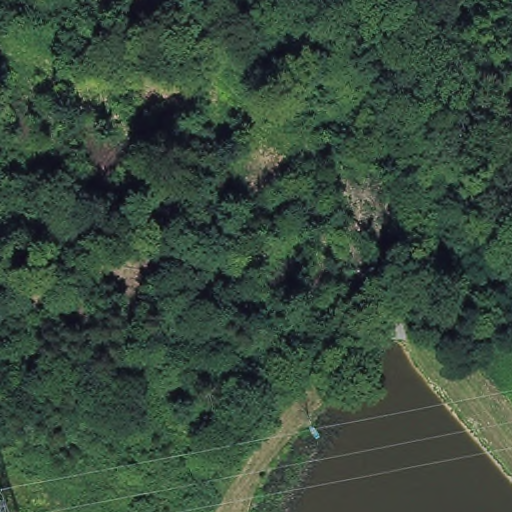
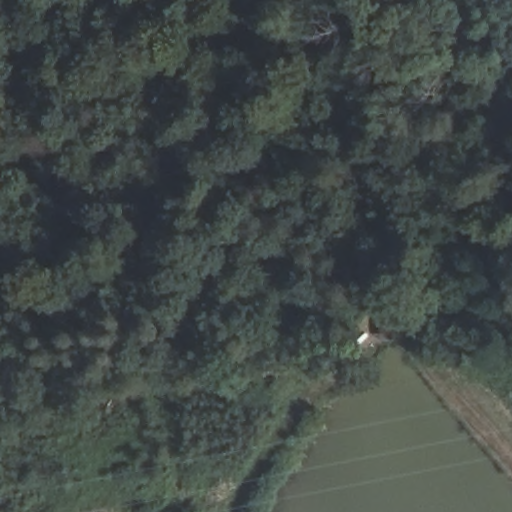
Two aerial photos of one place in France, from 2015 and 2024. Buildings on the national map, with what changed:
unchanged [(357,288),(382,290),(382,309),(357,311),(357,288)]

